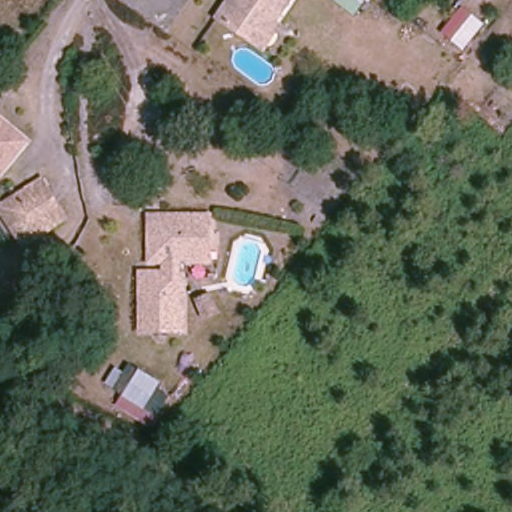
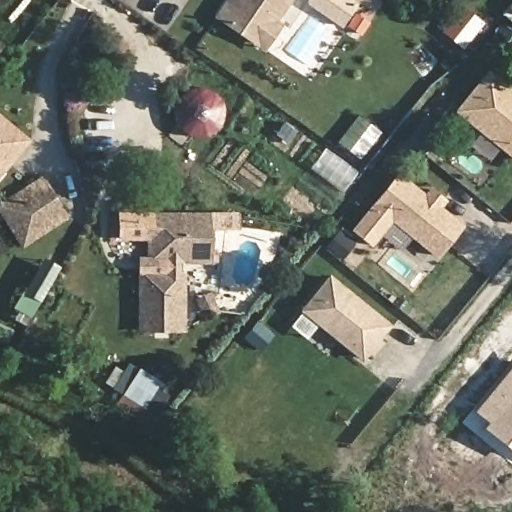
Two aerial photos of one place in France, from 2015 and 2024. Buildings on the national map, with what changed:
unchanged [(217,18),(210,13),(220,0),(286,0),(270,21),(275,25),(257,50),(249,44),(217,18)]
new [(345,0),(349,3),(334,22),(311,4),(313,0),(345,0)]
unchanged [(462,5),(483,21),(462,49),(441,31),(462,5)]
new [(490,161),(471,145),(481,134),(454,112),(488,70),(512,90),(512,158),(500,149),(490,161)]
new [(206,139),(187,135),(174,125),(170,117),(171,110),(174,100),(177,94),(190,88),(201,87),(215,92),(224,100),(226,112),(221,129),(206,139)]
new [(361,160),(338,142),(359,115),(382,132),(361,160)]
unchanged [(0,170),(0,117),(25,139),(0,170)]
new [(392,222),(371,248),(350,230),(397,173),(424,192),(431,185),(448,200),(442,207),(466,225),(437,260),(392,222)]
unchanged [(40,177),(66,217),(22,245),(0,211),(0,203),(40,177)]
unchanged [(211,215),(211,260),(149,260),(149,214),(211,215)]
unchanged [(183,271),(183,330),(140,330),(139,271),(183,271)]
new [(318,326),(307,340),(292,327),(330,275),(393,326),(382,340),(386,343),(375,357),(370,353),(362,363),(318,326)]
unchanged [(209,293),(216,310),(205,315),(198,297),(209,293)]
new [(488,422),(475,412),(512,367),(512,450),(485,427),(488,422)]

